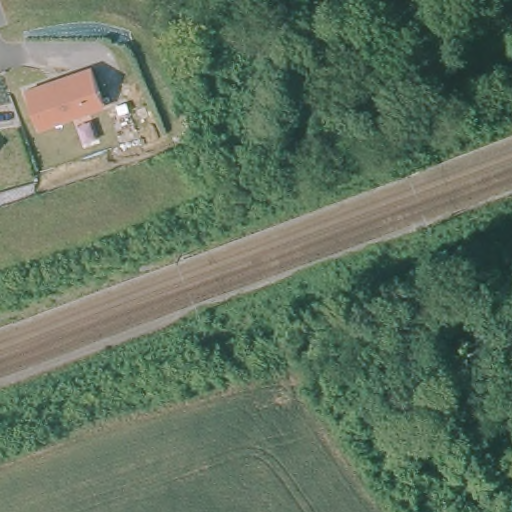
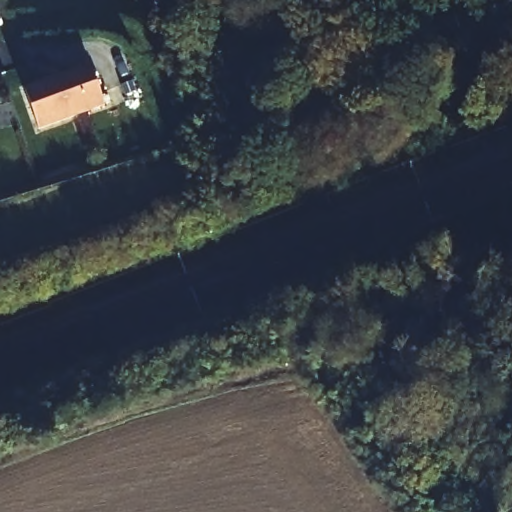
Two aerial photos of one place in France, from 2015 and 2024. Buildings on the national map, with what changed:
unchanged [(96,82),(103,100),(36,124),(23,86),(75,67),(89,62),(96,82)]

